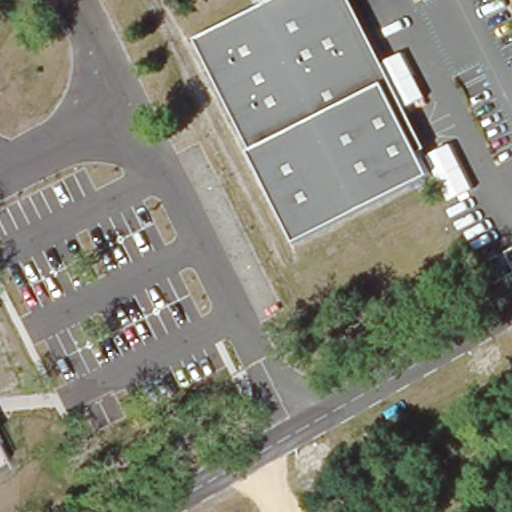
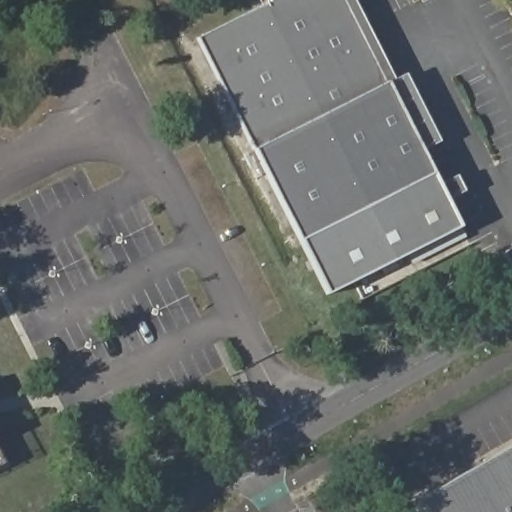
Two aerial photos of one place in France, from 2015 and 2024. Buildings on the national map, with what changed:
unchanged [(388,78),(389,77),(436,175),(299,240),(254,149),(252,149),(195,37),(265,0),(352,0),(388,78)]
new [(391,80),(404,73),(439,141),(423,149),(391,80)]
new [(440,183),(457,175),(464,189),(447,198),(460,225),(466,237),(412,263),(407,253),(327,294),(299,240),(436,175),(440,183)]
new [(422,512),(415,500),(512,445),(512,512),(422,512)]
unchanged [(0,464),(0,455),(4,462),(0,464)]

